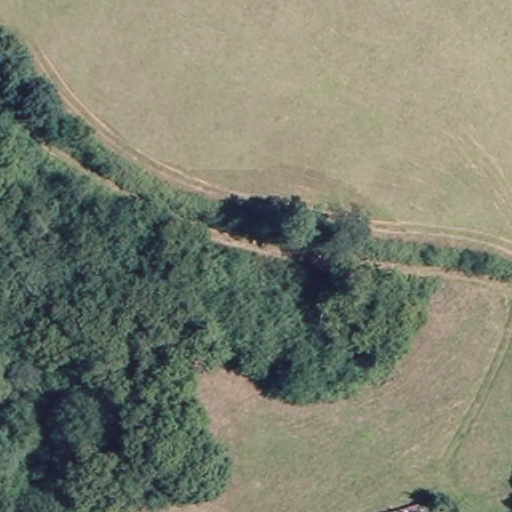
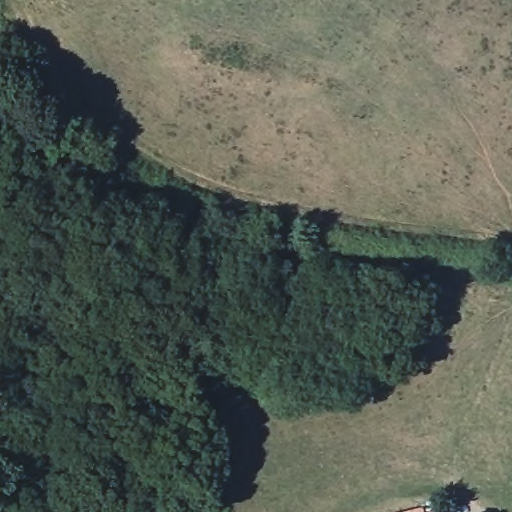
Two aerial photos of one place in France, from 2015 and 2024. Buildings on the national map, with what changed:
unchanged [(433,510),(434,512),(424,512),(433,510)]

